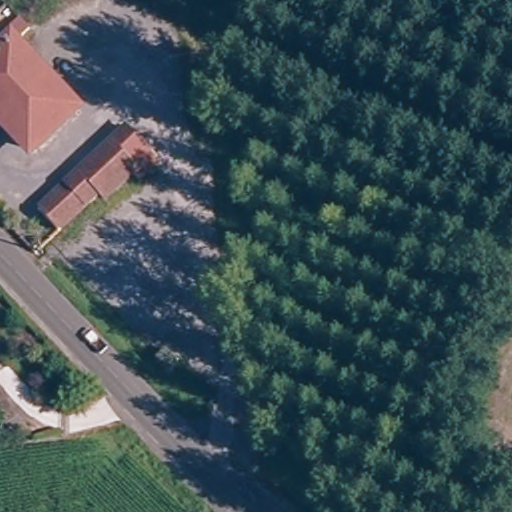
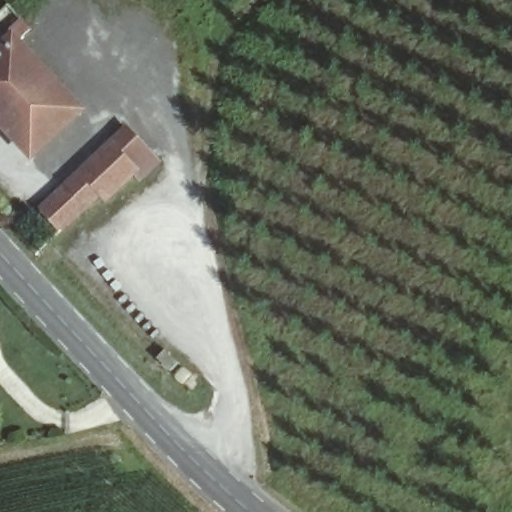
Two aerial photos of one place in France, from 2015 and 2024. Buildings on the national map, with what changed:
unchanged [(76,126),(31,166),(16,150),(27,139),(0,111),(0,26),(7,19),(31,45),(14,60),(76,126)]
unchanged [(36,249),(16,228),(127,124),(158,158),(141,174),(135,168),(106,195),(100,189),(46,241),(36,249)]

